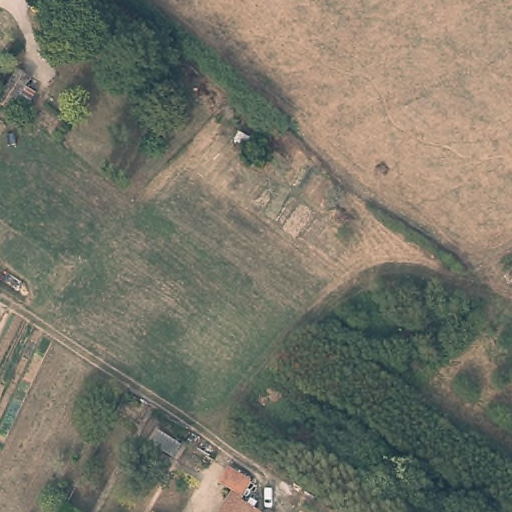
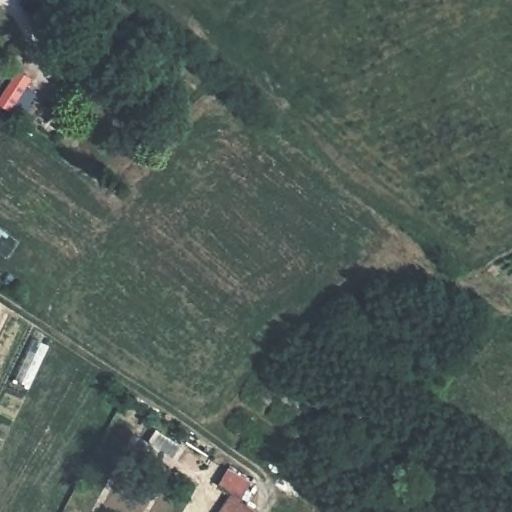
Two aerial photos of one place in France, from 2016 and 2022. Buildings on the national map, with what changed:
unchanged [(217,482),(229,465),(256,481),(246,500),(268,512),(212,512),(227,488),(217,482)]

